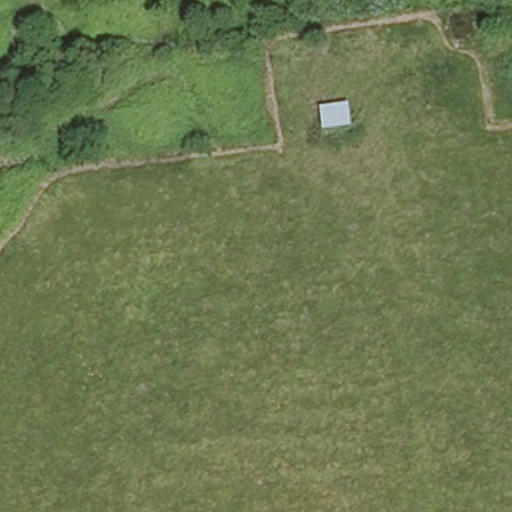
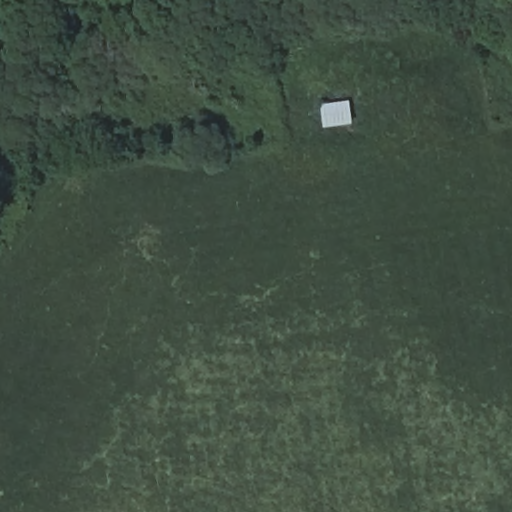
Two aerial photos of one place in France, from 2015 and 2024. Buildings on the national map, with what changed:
unchanged [(324,130),(322,107),(353,102),(355,126),(324,130)]

